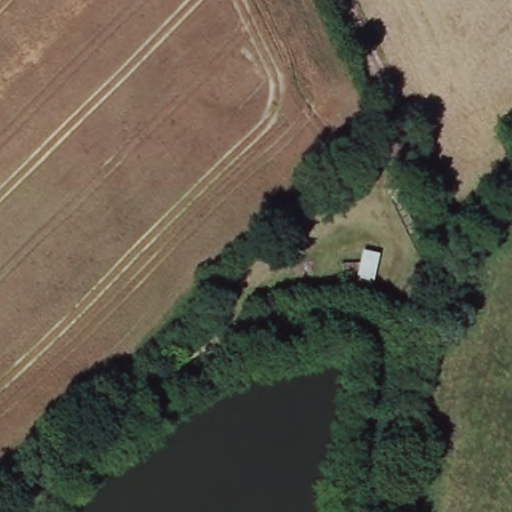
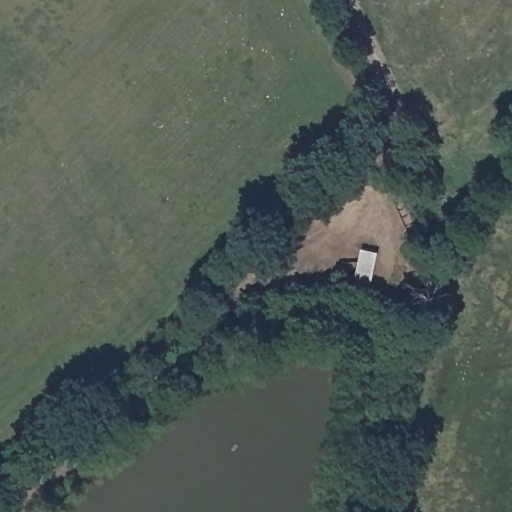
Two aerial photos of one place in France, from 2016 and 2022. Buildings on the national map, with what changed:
unchanged [(379,251),(372,285),(357,282),(363,246),(379,251)]

